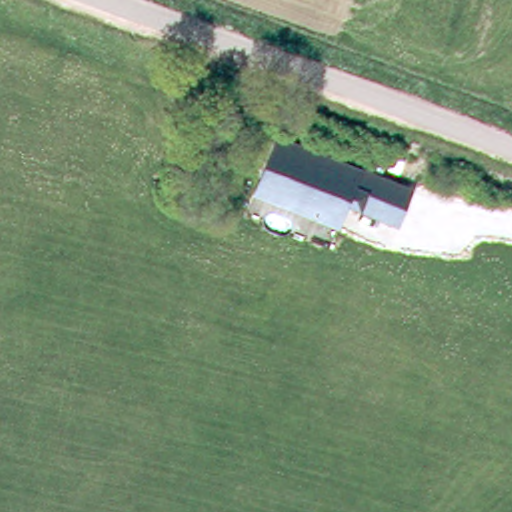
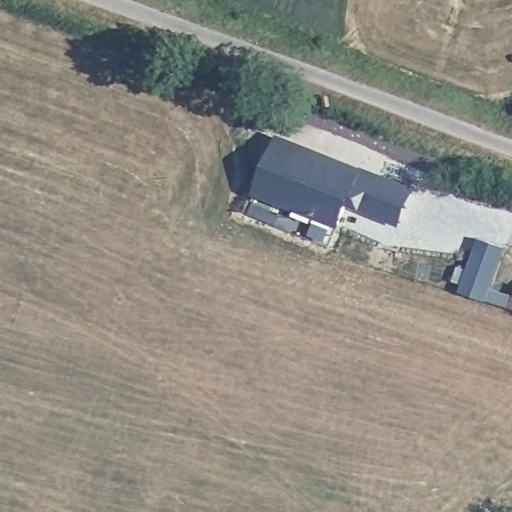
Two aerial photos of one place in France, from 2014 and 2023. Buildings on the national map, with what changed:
unchanged [(278,136),(415,187),(401,225),(349,207),(338,226),(253,194),(278,136)]
new [(478,240),(504,247),(493,288),(512,295),(512,309),(462,293),(478,240)]

